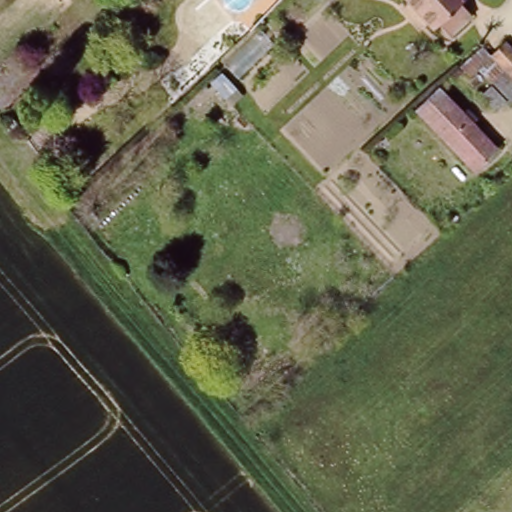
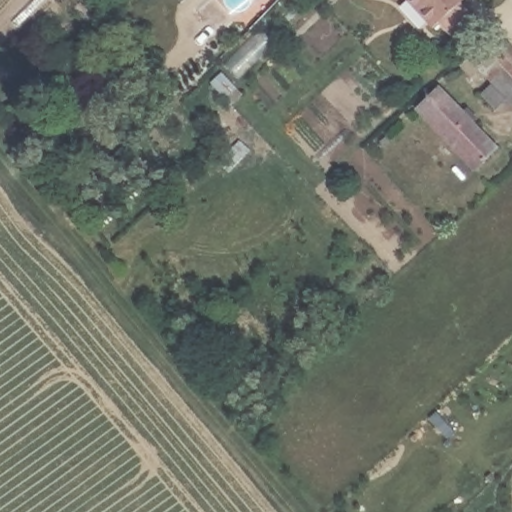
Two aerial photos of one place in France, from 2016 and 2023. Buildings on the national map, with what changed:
unchanged [(472,11),(451,31),(439,19),(433,22),(412,0),(461,0),(472,11)]
unchanged [(512,76),(496,59),(489,65),(480,56),(501,37),(512,48),(512,76)]
unchanged [(511,77),(512,78),(512,104),(498,90),(511,77)]
unchanged [(497,158),(474,180),(418,119),(441,98),(497,158)]

